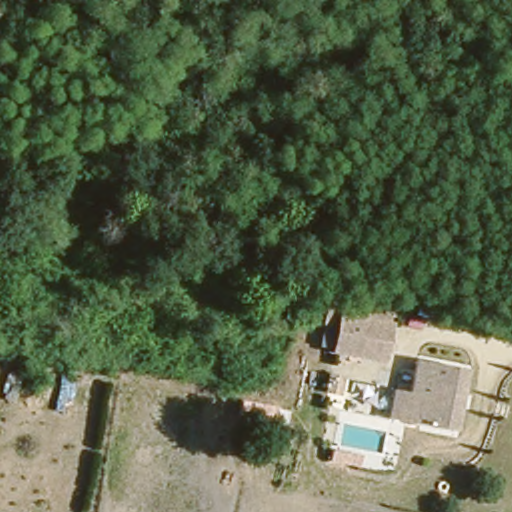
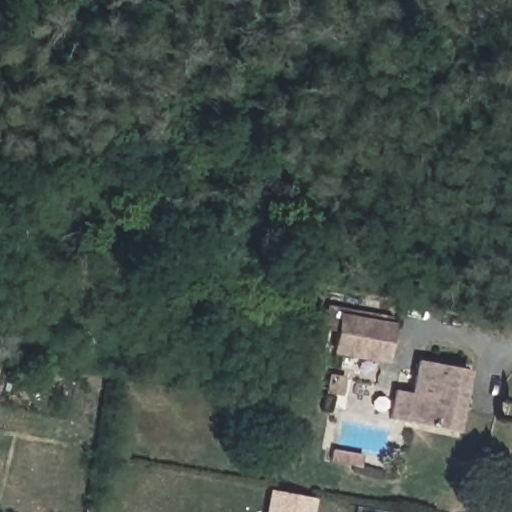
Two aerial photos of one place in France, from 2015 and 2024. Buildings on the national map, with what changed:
unchanged [(337,312),(392,320),(384,363),(329,354),(337,312)]
unchanged [(393,389),(408,392),(415,360),(466,369),(453,430),(386,418),(393,389)]
new [(314,512),(263,512),(267,490),(316,499),(314,512)]

